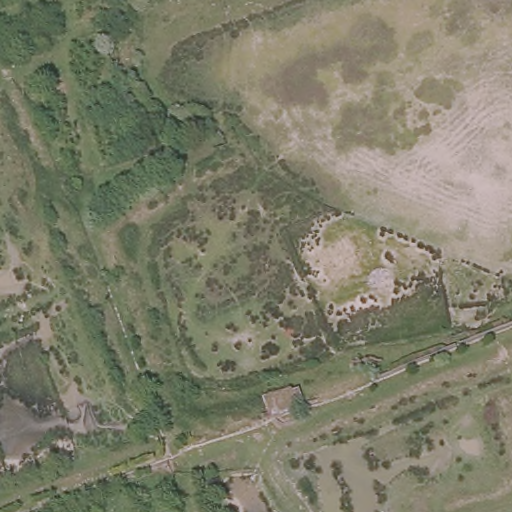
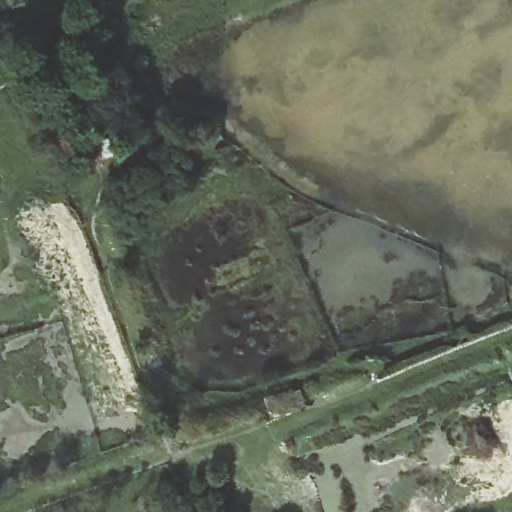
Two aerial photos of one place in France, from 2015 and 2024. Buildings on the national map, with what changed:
unchanged [(300,384),(304,396),(274,405),(273,393),(300,384)]

